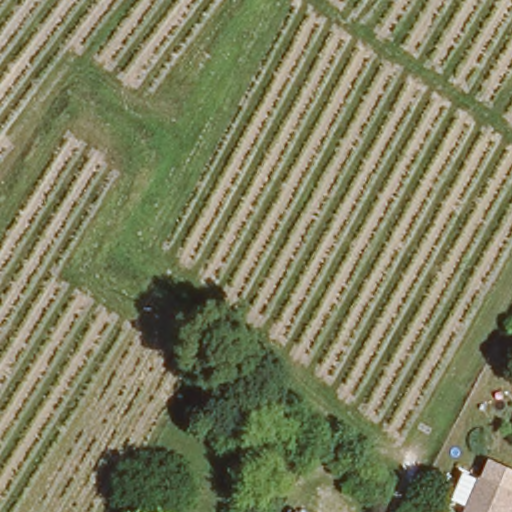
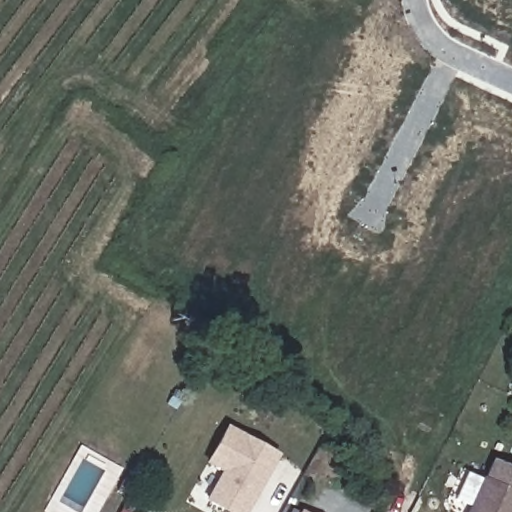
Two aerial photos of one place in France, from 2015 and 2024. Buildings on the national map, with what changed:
new [(277,457),(247,512),(223,512),(203,501),(219,472),(206,457),(225,428),(243,434),(241,437),(277,457)]
unchanged [(471,503),(457,495),(471,469),(484,477),(512,490),(512,512),(467,512),(471,503)]
unchanged [(297,509),(303,512),(296,512),(297,509)]

